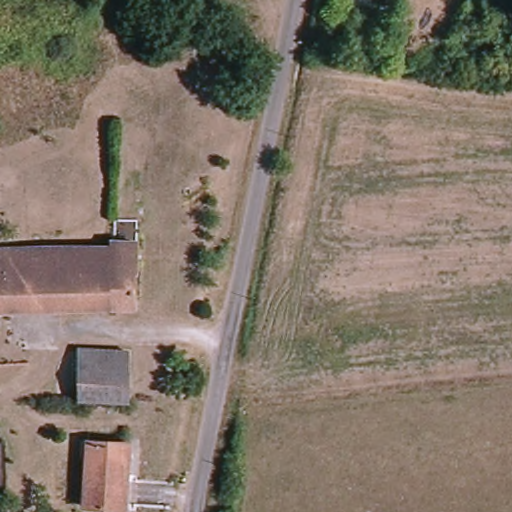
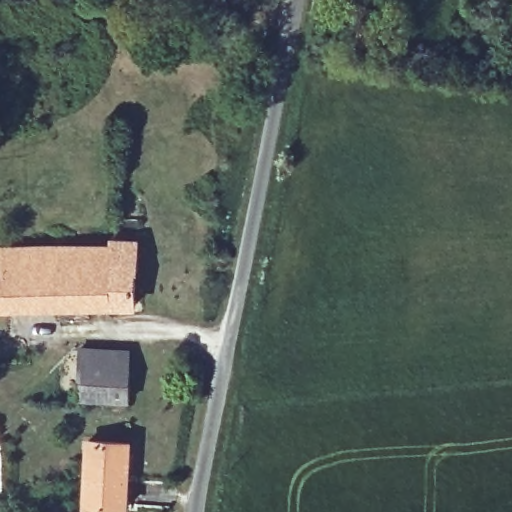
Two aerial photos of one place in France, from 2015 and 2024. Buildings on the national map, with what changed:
unchanged [(362,12),(377,15),(372,53),(357,51),(362,12)]
unchanged [(102,245),(102,238),(107,238),(108,223),(136,227),(136,245),(135,275),(131,276),(131,307),(55,309),(52,251),(102,250),(102,245)]
unchanged [(55,309),(0,310),(0,251),(52,251),(55,309)]
unchanged [(127,352),(127,403),(81,402),(81,362),(81,353),(127,352)]
unchanged [(91,442),(129,445),(124,506),(85,502),(91,442)]

